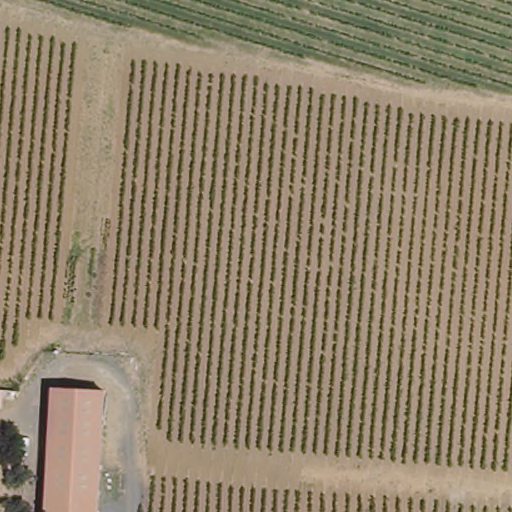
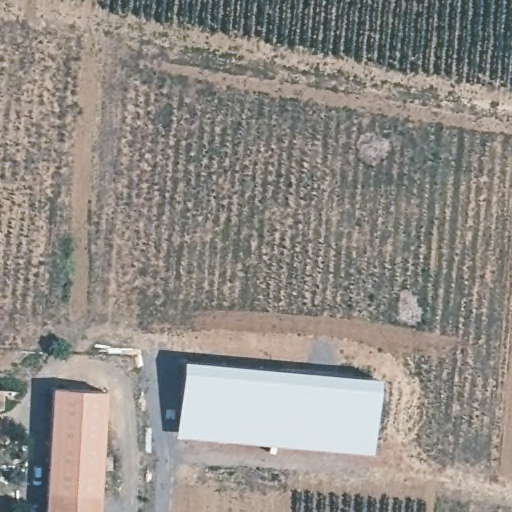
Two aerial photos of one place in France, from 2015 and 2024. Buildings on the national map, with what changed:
new [(181,358),(378,376),(371,454),(173,437),(181,358)]
unchanged [(104,437),(105,445),(70,442),(54,440),(53,432),(58,388),(105,393),(104,437)]
unchanged [(70,442),(63,512),(48,512),(54,440),(70,442)]
unchanged [(70,442),(105,445),(99,512),(63,512),(70,442)]

